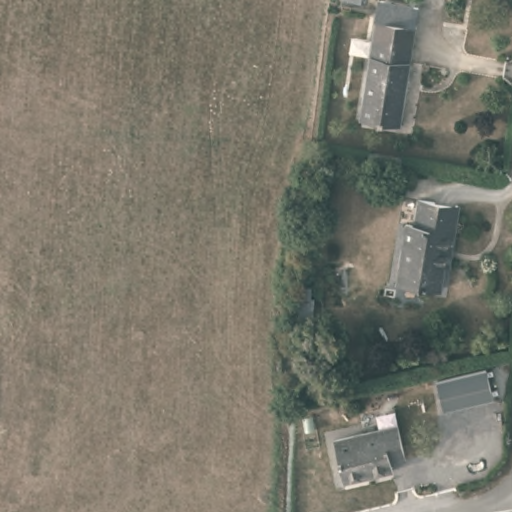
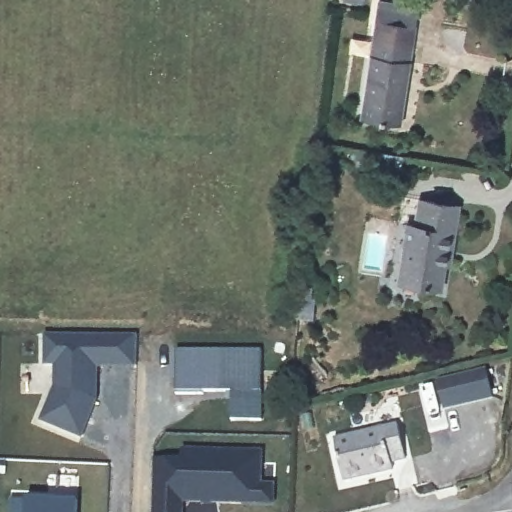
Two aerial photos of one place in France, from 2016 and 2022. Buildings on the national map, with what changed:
unchanged [(364,119),(382,20),(422,27),(404,127),(364,119)]
unchanged [(448,265),(446,286),(403,282),(409,225),(419,225),(421,198),(463,202),(461,229),(457,266),(448,265)]
new [(97,367),(97,398),(81,437),(39,421),(54,385),(53,367),(43,366),(44,333),(136,335),(136,367),(97,367)]
new [(177,352),(263,352),(263,422),(233,422),(233,396),(177,396),(177,352)]
unchanged [(486,371),(493,402),(443,415),(436,382),(486,371)]
unchanged [(393,462),(394,471),(346,481),(337,439),(401,426),(409,459),(393,462)]
new [(183,503),(183,512),(150,512),(153,457),(164,457),(181,457),(180,445),(226,446),(225,450),(263,450),(262,482),(275,483),(274,505),(183,503)]

